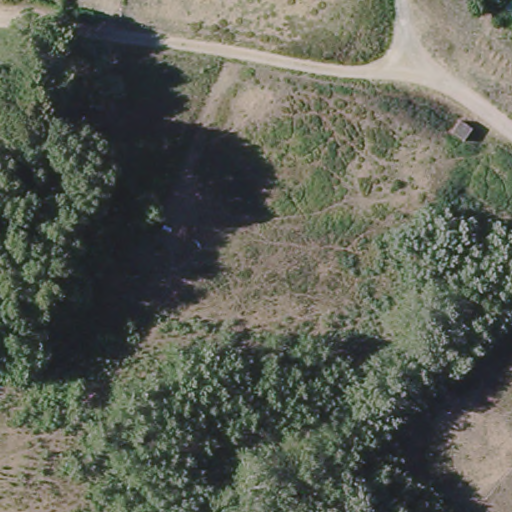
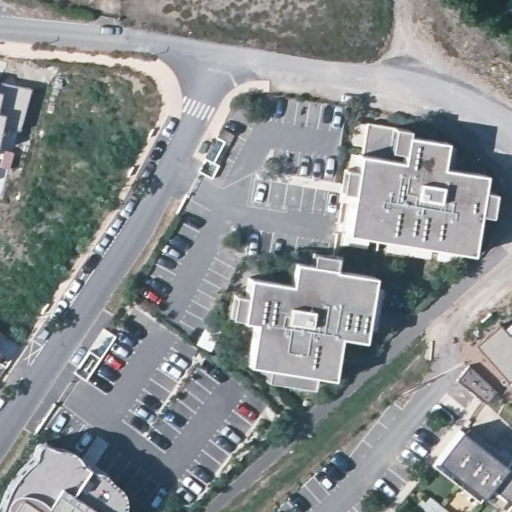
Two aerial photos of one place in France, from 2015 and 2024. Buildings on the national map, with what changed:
unchanged [(505,0),(512,0),(512,16),(511,17),(499,7),(505,0)]
new [(30,88),(19,129),(1,125),(0,131),(0,86),(1,82),(30,88)]
demolished [(463,141),(451,132),(459,120),(471,128),(463,141)]
new [(348,232),(353,192),(341,190),(344,171),(356,172),(359,155),(364,155),(368,125),(393,132),(393,127),(408,129),(407,137),(444,142),(441,168),(484,174),(481,191),(494,193),(491,216),(478,214),(471,255),(348,232)]
new [(339,337),(331,379),(313,376),(311,387),(266,379),(268,368),(248,365),(256,323),(242,321),(243,318),(230,316),(233,296),(244,297),(248,279),(292,285),(294,263),(311,266),(313,253),(336,257),(333,270),(374,277),(363,341),(339,337)]
demolished [(0,289),(0,265),(9,270),(0,289)]
new [(501,323),(504,326),(512,320),(512,382),(509,384),(474,344),(501,323)]
new [(486,404),(455,381),(467,367),(496,391),(486,404)]
new [(483,500),(481,499),(478,503),(432,467),(435,463),(461,431),(465,425),(501,454),(497,459),(507,467),(512,460),(512,506),(491,489),(483,500)]
new [(4,498),(8,486),(14,474),(23,464),(33,456),(33,451),(34,446),(38,443),(44,443),(52,447),(60,449),(76,458),(83,465),(91,470),(100,472),(108,480),(115,486),(120,494),(122,504),(120,512),(0,512),(0,507),(4,498)]

